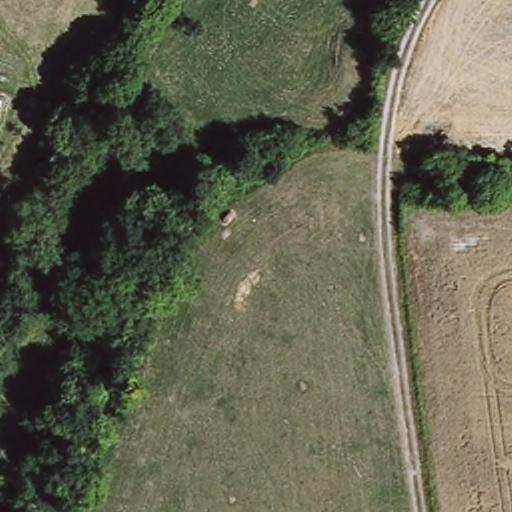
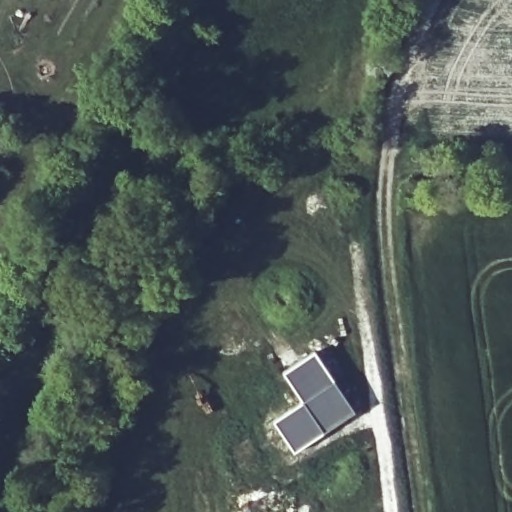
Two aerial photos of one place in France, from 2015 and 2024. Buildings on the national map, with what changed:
new [(274,420),(302,402),(283,373),(313,353),(352,412),(293,450),(274,420)]

